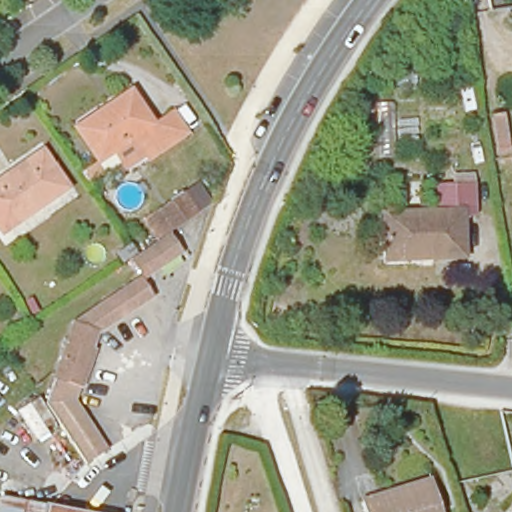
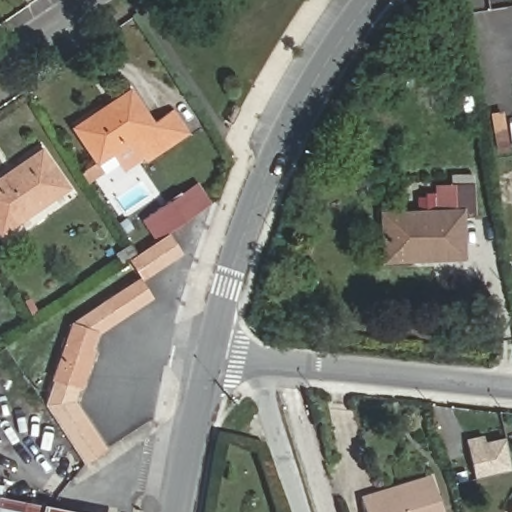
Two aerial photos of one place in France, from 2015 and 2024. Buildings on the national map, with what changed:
unchanged [(134,87),(155,120),(174,107),(191,132),(152,157),(136,136),(99,160),(76,126),(134,87)]
unchanged [(502,149),(493,111),(502,109),(511,147),(502,149)]
unchanged [(69,185),(5,229),(0,221),(0,179),(46,149),(69,185)]
unchanged [(390,255),(382,213),(443,201),(438,177),(462,172),(472,171),(479,207),(468,209),(457,211),(466,252),(433,258),(392,267),(390,255)]
unchanged [(180,192),(195,182),(209,202),(194,212),(171,228),(157,207),(180,192)]
unchanged [(171,228),(182,245),(150,266),(139,250),(142,247),(171,228)]
unchanged [(120,312),(101,326),(72,397),(100,436),(78,451),(45,402),(75,320),(142,268),(157,292),(123,316),(120,312)]
new [(478,435),(480,442),(500,438),(507,468),(469,476),(461,438),(478,435)]
unchanged [(357,493),(405,478),(429,471),(432,482),(442,512),(364,512),(357,493)]
unchanged [(48,506),(34,503),(35,495),(116,512),(47,512),(48,506)]
unchanged [(34,503),(48,506),(47,512),(0,512),(0,496),(34,503)]
unchanged [(512,507),(512,512),(508,512),(512,507)]

